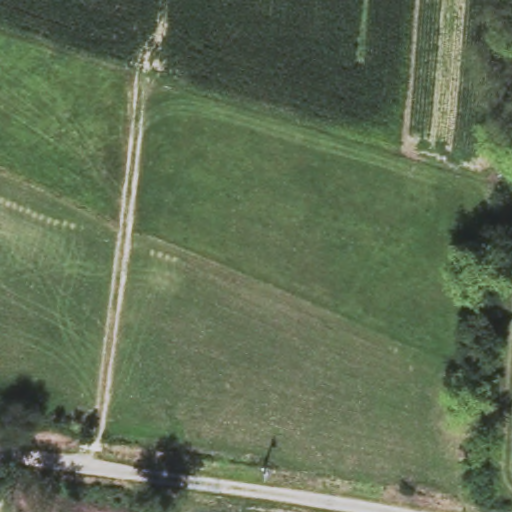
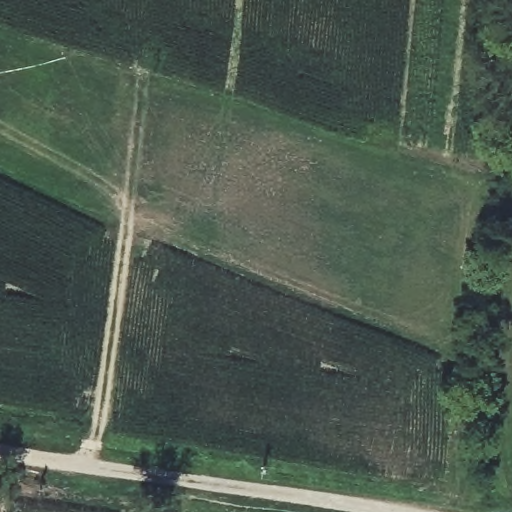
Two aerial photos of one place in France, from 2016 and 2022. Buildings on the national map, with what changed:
unchanged [(169,41),(171,74),(151,73),(150,46),(169,41)]

